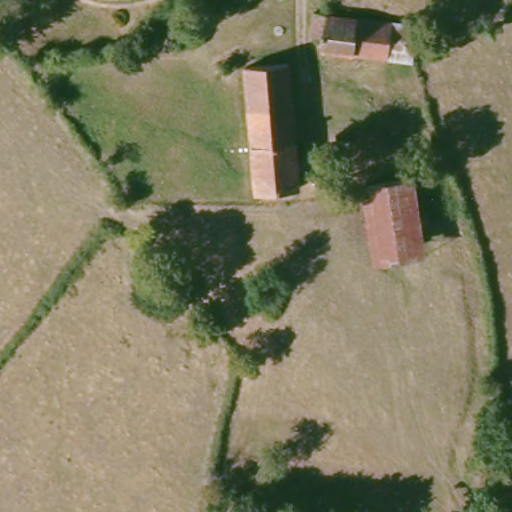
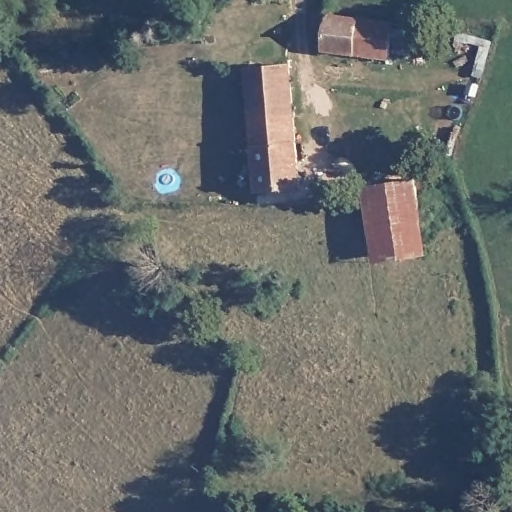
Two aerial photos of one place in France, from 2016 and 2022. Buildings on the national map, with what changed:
unchanged [(429,23),(429,59),(328,60),(328,54),(311,52),(311,25),(429,23)]
unchanged [(258,190),(253,62),(290,62),(295,188),(258,190)]
unchanged [(423,222),(373,228),(365,184),(415,177),(423,222)]
unchanged [(423,222),(427,251),(378,259),(373,228),(423,222)]

